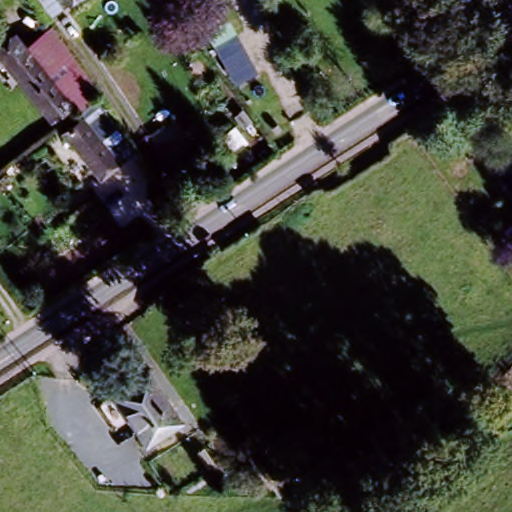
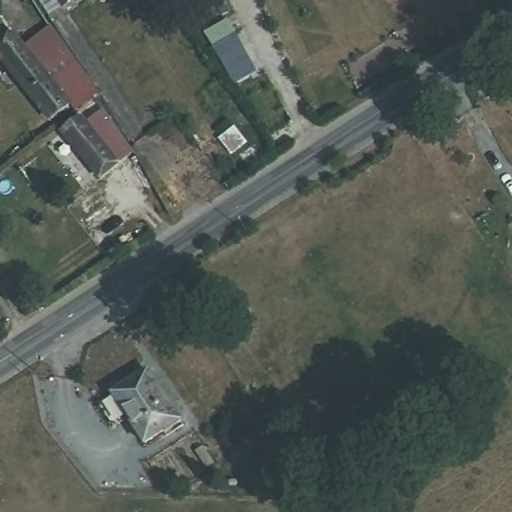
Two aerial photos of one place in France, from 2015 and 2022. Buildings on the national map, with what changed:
unchanged [(60,4),(57,1),(46,10),(39,0),(66,0),(60,4)]
unchanged [(47,117),(0,60),(0,35),(10,26),(21,40),(47,18),(95,87),(87,95),(70,106),(65,102),(47,117)]
unchanged [(94,174),(53,125),(72,109),(70,106),(87,95),(129,146),(94,174)]
unchanged [(182,420),(145,445),(110,393),(148,368),(182,420)]

